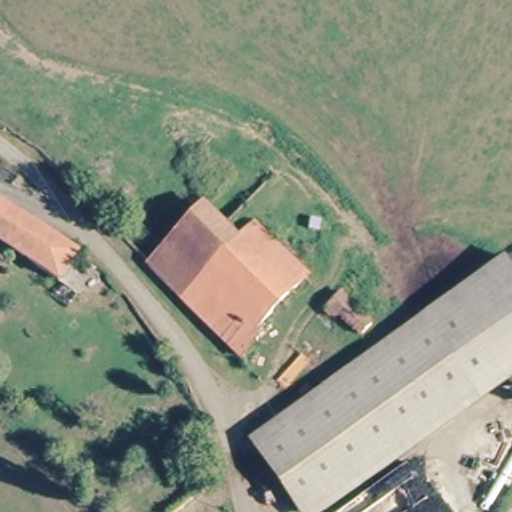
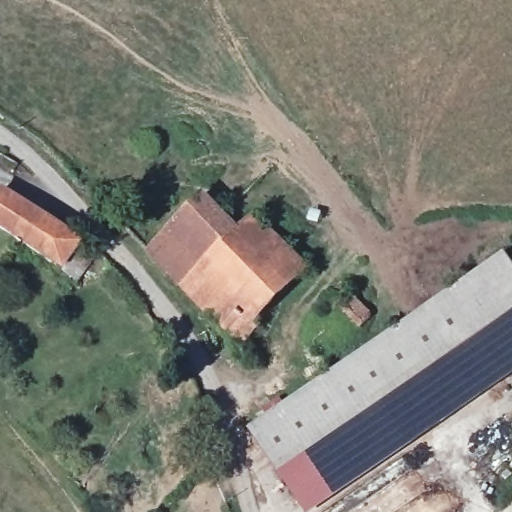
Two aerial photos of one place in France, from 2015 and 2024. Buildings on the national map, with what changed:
unchanged [(86,242),(68,269),(19,235),(0,222),(0,210),(13,190),(86,242)]
unchanged [(204,195),(244,229),(180,287),(146,251),(204,195)]
unchanged [(253,320),(261,328),(243,347),(180,287),(244,229),(259,215),(307,266),(253,320)]
unchanged [(512,363),(481,387),(470,373),(417,306),(495,245),(512,267),(512,363)]
unchanged [(379,316),(372,322),(368,326),(353,306),(346,313),(331,298),(339,291),(349,284),(379,316)]
unchanged [(470,373),(304,507),(254,437),(375,340),(417,306),(470,373)]
unchanged [(481,387),(326,512),(308,512),(304,507),(470,373),(481,387)]

